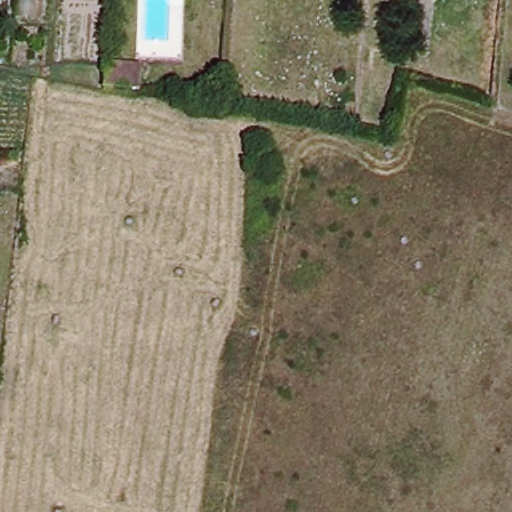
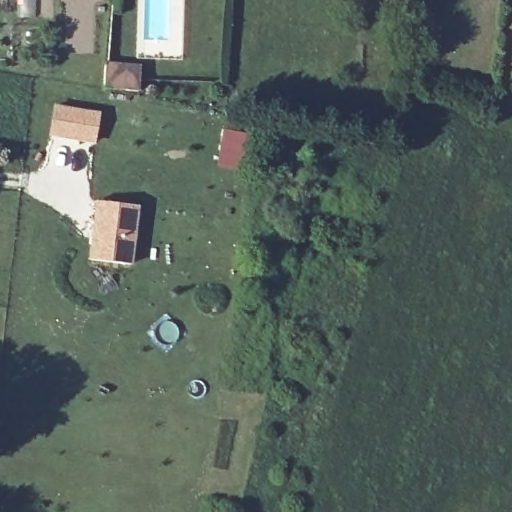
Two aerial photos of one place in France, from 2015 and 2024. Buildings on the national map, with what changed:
unchanged [(148,57),(147,85),(136,86),(107,83),(109,58),(137,57),(148,57)]
new [(52,107),(95,113),(91,142),(47,135),(52,107)]
new [(96,202),(136,207),(127,267),(87,261),(96,202)]

